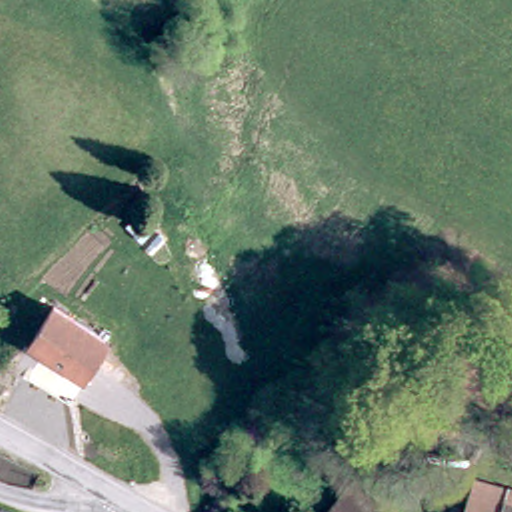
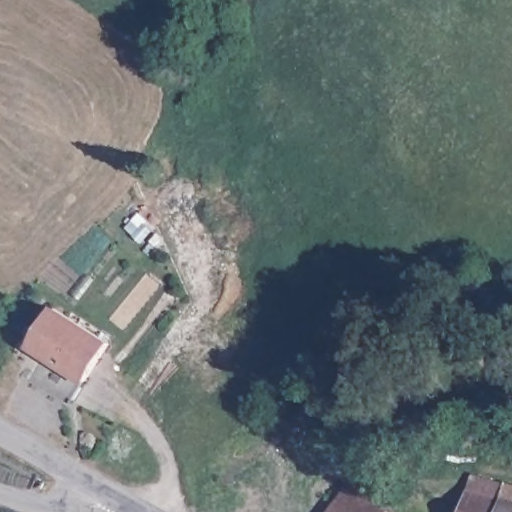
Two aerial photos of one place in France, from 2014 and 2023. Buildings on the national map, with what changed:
unchanged [(34,336),(52,305),(108,338),(85,377),(51,357),(29,345),(34,336)]
unchanged [(397,512),(328,512),(350,480),(397,512)]
unchanged [(469,512),(480,488),(512,501),(512,512),(469,512)]
unchanged [(466,512),(461,512),(462,511),(466,512)]

